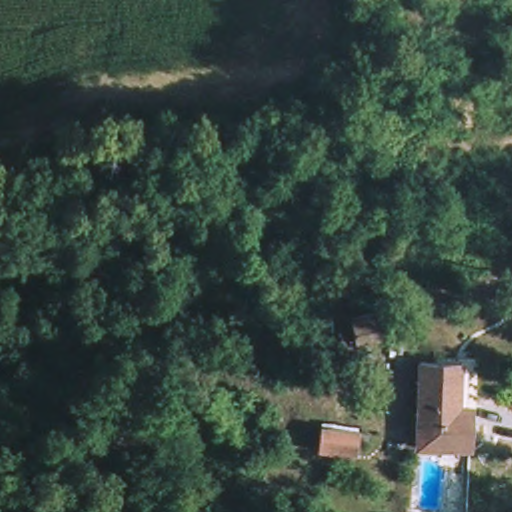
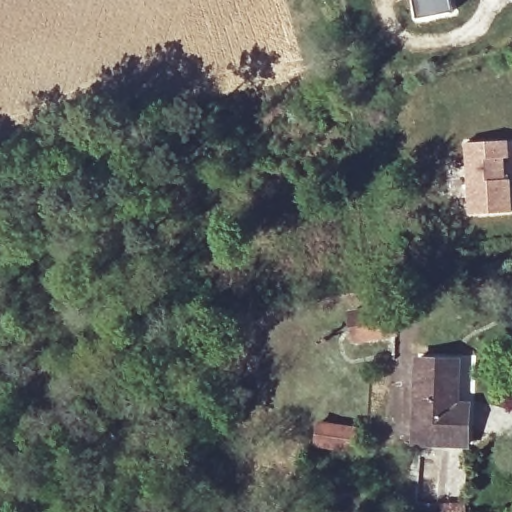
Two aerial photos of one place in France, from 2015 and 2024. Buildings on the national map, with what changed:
new [(417,19),(413,0),(451,0),(454,11),(417,19)]
new [(510,158),(505,158),(506,179),(511,179),(512,202),(512,213),(468,214),(465,143),(509,140),(510,158)]
unchanged [(357,291),(395,283),(401,309),(361,319),(357,291)]
unchanged [(480,445),(427,441),(435,353),(473,358),(469,404),(483,406),(482,424),(480,445)]
unchanged [(315,419),(320,398),(356,406),(353,429),(315,419)]

